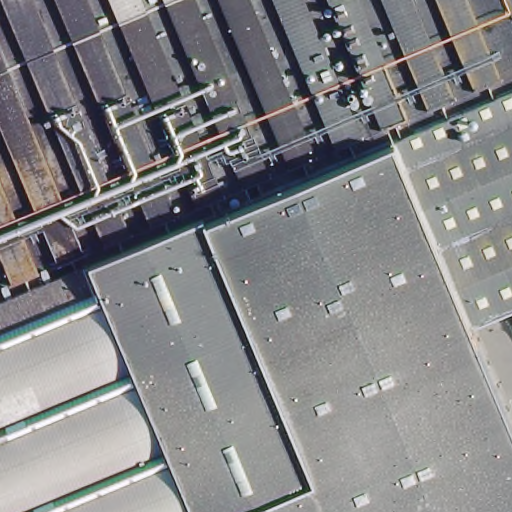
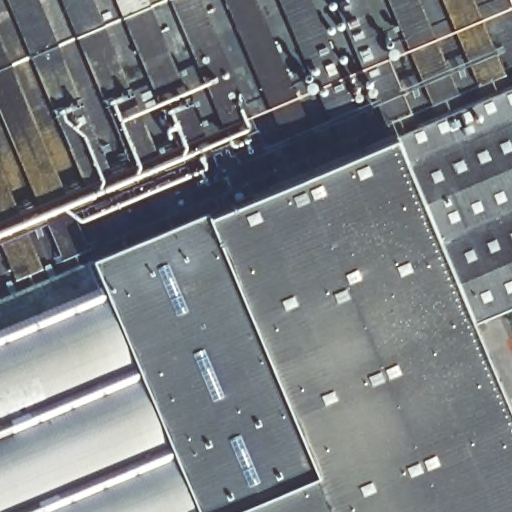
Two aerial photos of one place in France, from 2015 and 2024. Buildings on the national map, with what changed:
unchanged [(467,323),(512,435),(512,512),(0,512),(0,0),(512,0),(512,305),(467,323)]

